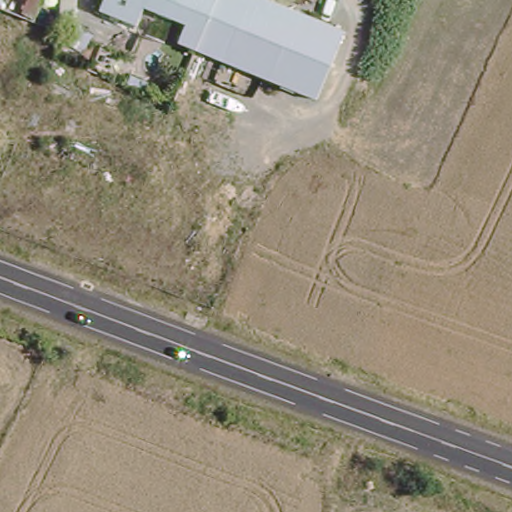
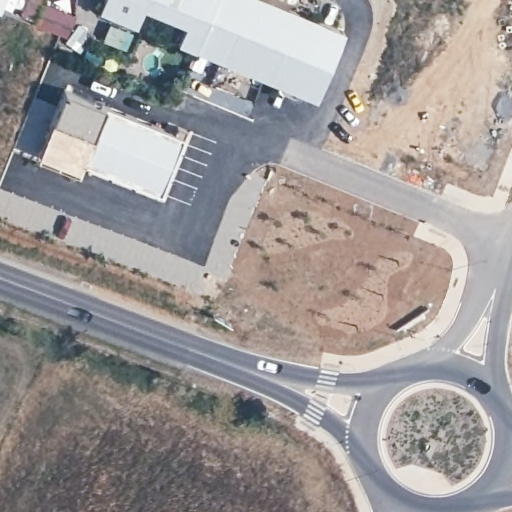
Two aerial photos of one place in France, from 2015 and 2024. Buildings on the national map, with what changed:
unchanged [(95,0),(137,0),(131,15),(95,0)]
unchanged [(311,90),(172,32),(180,14),(147,0),(286,0),(340,22),(311,90)]
new [(65,88),(125,113),(183,135),(160,193),(82,162),(77,172),(37,155),(65,88)]

